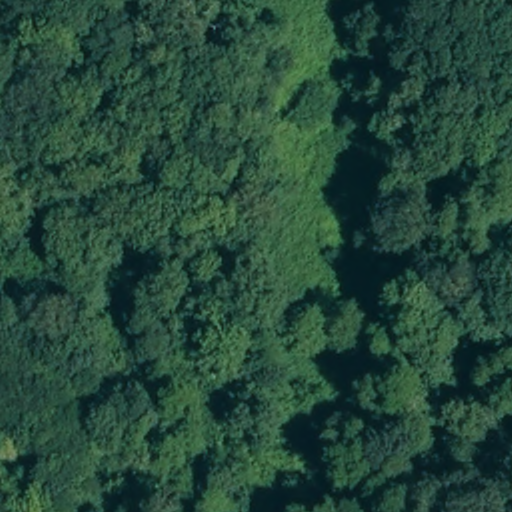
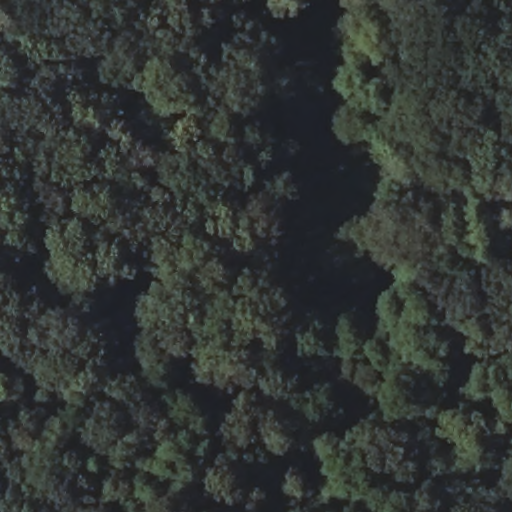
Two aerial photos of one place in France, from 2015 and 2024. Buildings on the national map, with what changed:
[]

